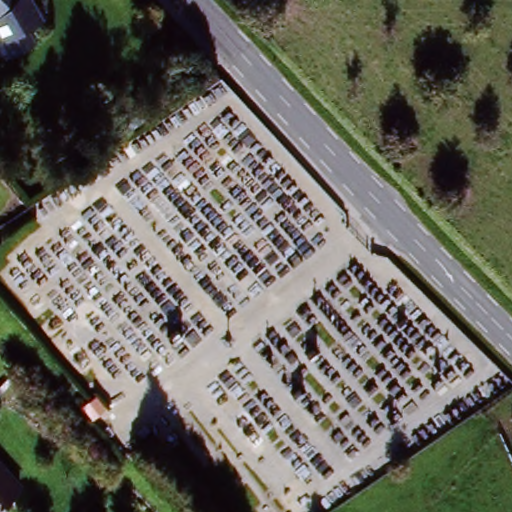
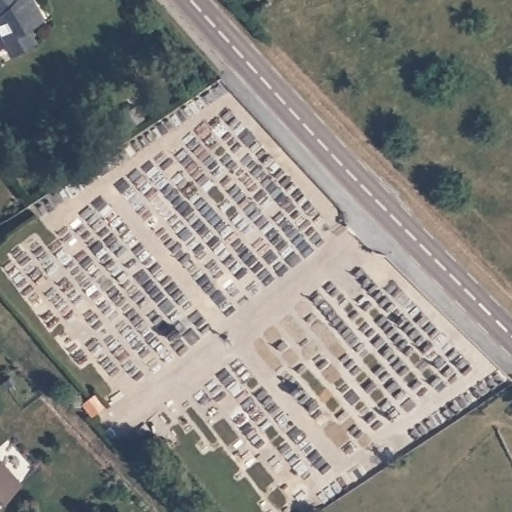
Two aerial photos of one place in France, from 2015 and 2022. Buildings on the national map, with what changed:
unchanged [(15,43),(3,21),(0,18),(0,0),(44,0),(54,19),(15,43)]
unchanged [(21,487),(0,504),(0,462),(21,487)]

